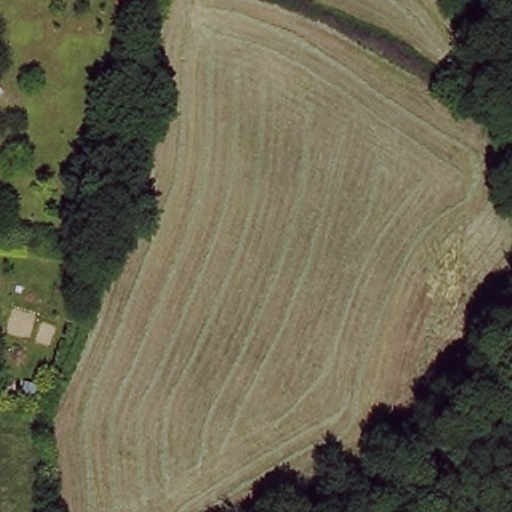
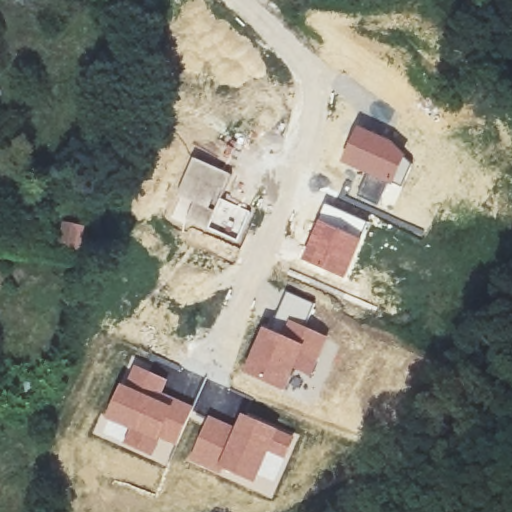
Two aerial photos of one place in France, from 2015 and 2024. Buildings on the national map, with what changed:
new [(360,127),(391,142),(407,154),(395,187),(343,166),(360,127)]
new [(192,157),(232,175),(222,197),(206,230),(181,221),(189,202),(176,197),(192,157)]
new [(222,197),(253,211),(238,244),(206,230),(222,197)]
new [(301,262),(317,221),(325,204),(369,222),(363,240),(346,281),(301,262)]
new [(286,323),(275,318),(286,292),(313,302),(303,327),(328,338),(311,378),(295,372),(285,393),(243,375),(265,328),(281,335),(286,323)]
new [(134,365),(169,380),(163,393),(193,406),(176,447),(160,441),(153,458),(120,442),(126,430),(107,422),(134,365)]
new [(209,416),(235,427),(242,415),(295,437),(274,484),(260,477),(257,486),(223,472),(221,476),(186,461),(209,416)]

